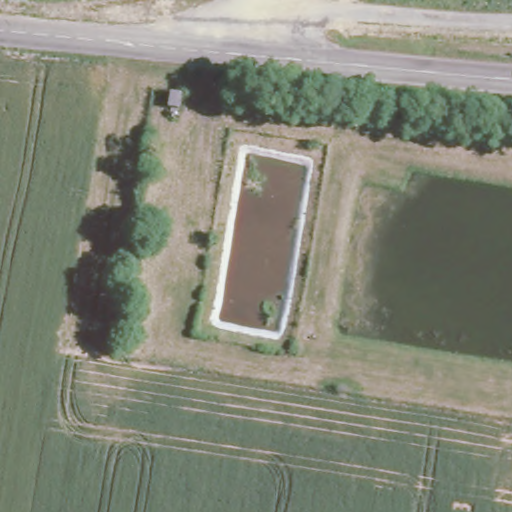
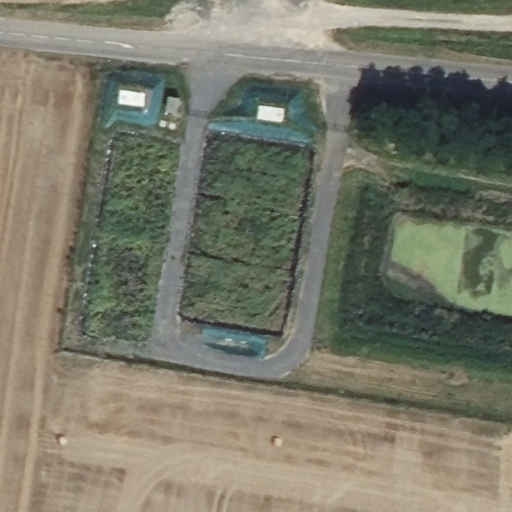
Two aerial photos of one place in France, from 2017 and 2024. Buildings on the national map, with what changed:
unchanged [(179,112),(169,110),(171,96),(181,98),(179,112)]

